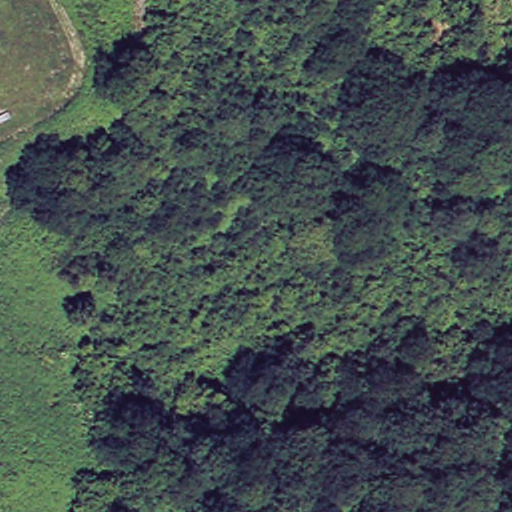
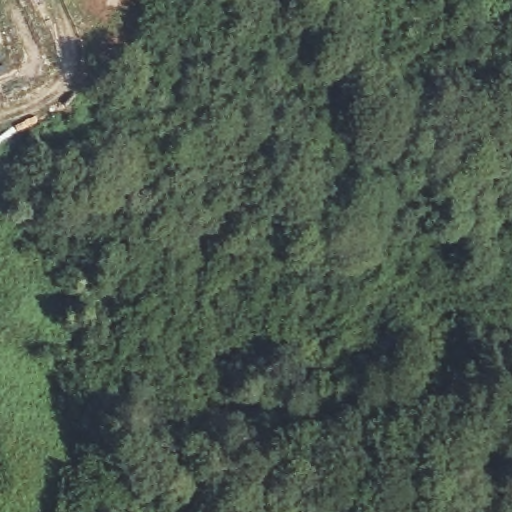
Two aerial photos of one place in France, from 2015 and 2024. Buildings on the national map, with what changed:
unchanged [(63,273),(78,253),(99,265),(80,287),(63,273)]

